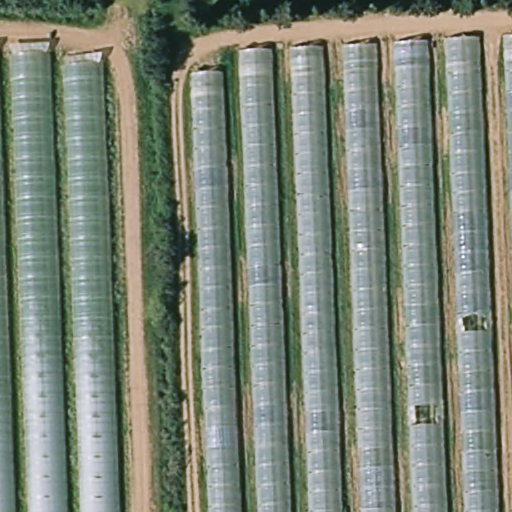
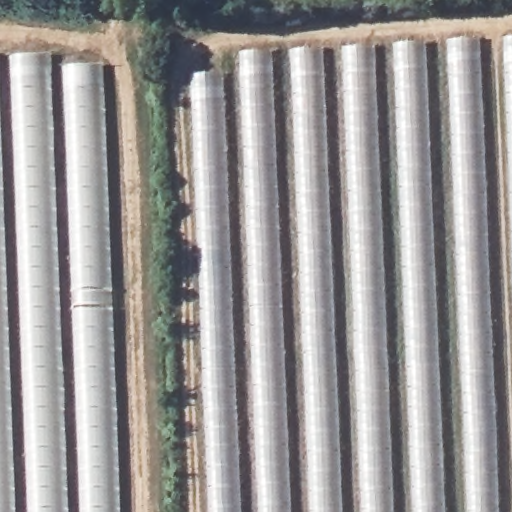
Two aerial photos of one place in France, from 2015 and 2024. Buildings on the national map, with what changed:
unchanged [(197,78),(241,75),(243,52),(512,38),(512,512),(213,512),(197,78)]
unchanged [(70,71),(108,71),(123,512),(0,512),(0,60),(65,60),(70,71)]

